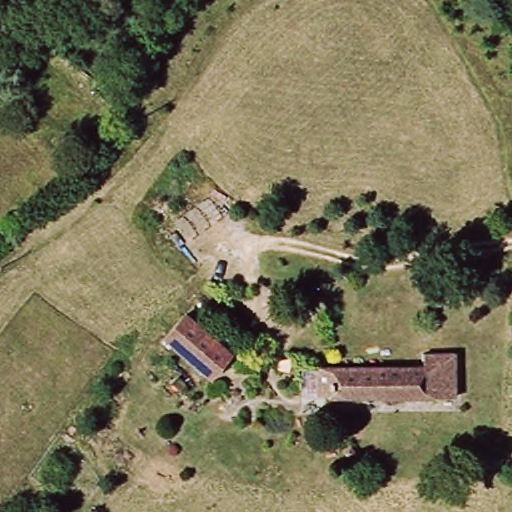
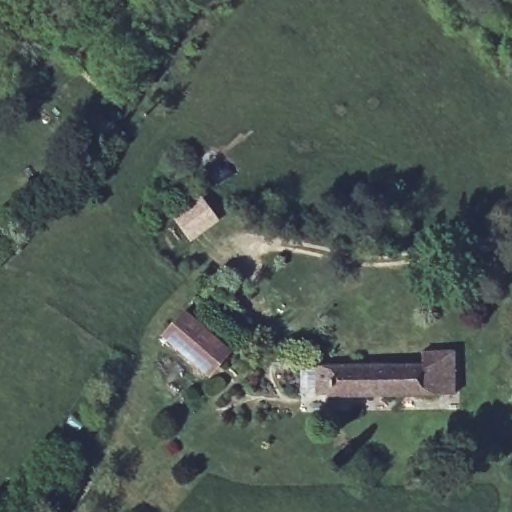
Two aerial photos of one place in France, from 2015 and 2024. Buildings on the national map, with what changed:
new [(200,198),(215,219),(190,237),(175,217),(200,198)]
unchanged [(235,348),(217,370),(172,335),(192,311),(235,348)]
unchanged [(427,369),(427,353),(456,353),(455,402),(320,403),(321,369),(427,369)]

